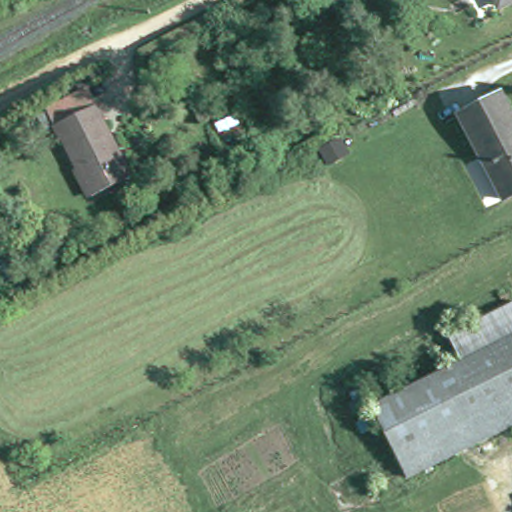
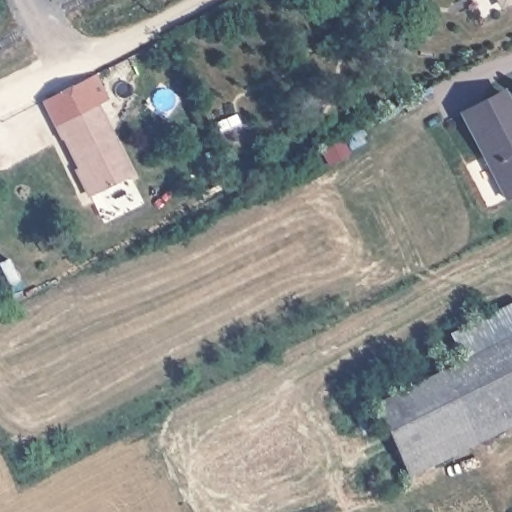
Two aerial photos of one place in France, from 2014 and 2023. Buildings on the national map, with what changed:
unchanged [(500,0),(512,0),(512,5),(505,9),(500,0)]
unchanged [(506,94),(512,106),(512,198),(506,201),(463,116),(506,94)]
unchanged [(99,208),(69,151),(67,152),(51,123),(93,103),(101,119),(138,189),(99,208)]
unchanged [(28,289),(15,296),(1,268),(14,263),(28,289)]
unchanged [(512,304),(512,341),(463,366),(448,336),(512,304)]
unchanged [(374,411),(463,366),(512,341),(512,400),(398,460),(374,411)]
unchanged [(398,460),(512,400),(512,426),(408,479),(398,460)]

